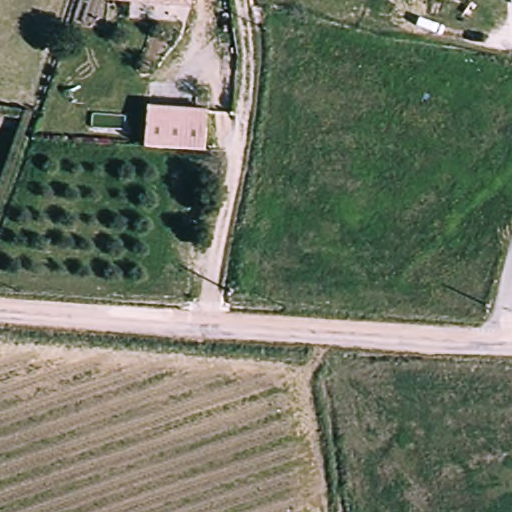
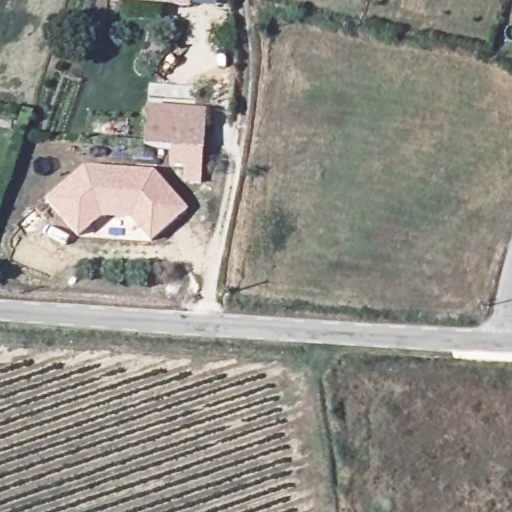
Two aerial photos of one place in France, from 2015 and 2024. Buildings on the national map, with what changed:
unchanged [(193,8),(104,1),(105,0),(193,0),(193,8)]
new [(218,14),(193,12),(194,0),(219,0),(218,14)]
unchanged [(206,152),(144,148),(148,106),(208,110),(206,152)]
new [(203,152),(201,185),(184,184),(184,169),(171,168),(171,149),(203,152)]
new [(102,220),(79,241),(44,202),(84,168),(154,172),(189,212),(151,244),(130,221),(102,220)]

